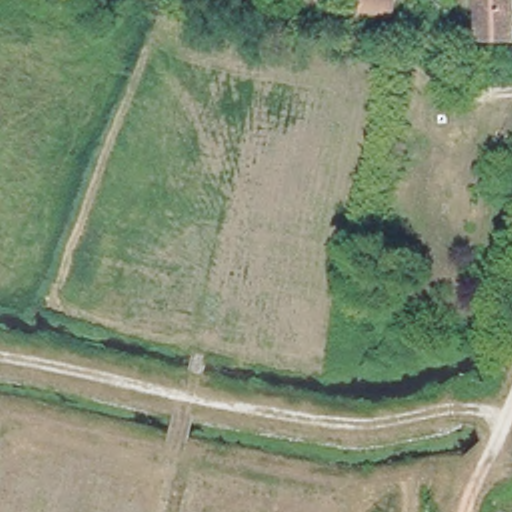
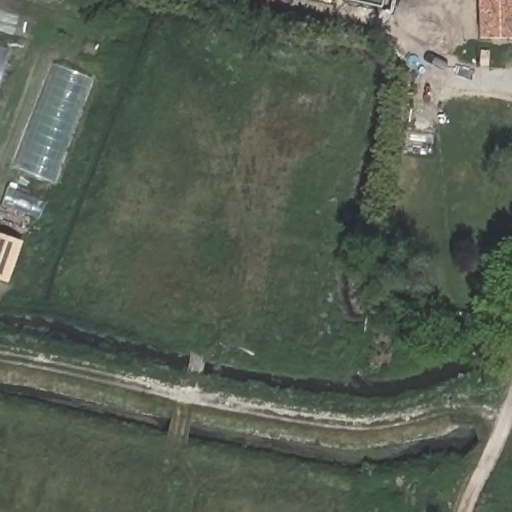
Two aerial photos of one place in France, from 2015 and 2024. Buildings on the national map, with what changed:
unchanged [(357,10),(360,0),(398,0),(395,19),(357,10)]
unchanged [(512,0),(512,37),(476,37),(475,0),(512,0)]
new [(0,48),(10,52),(0,80),(0,48)]
new [(53,182),(15,167),(54,63),(92,78),(53,182)]
new [(0,280),(0,233),(22,240),(7,282),(0,280)]

